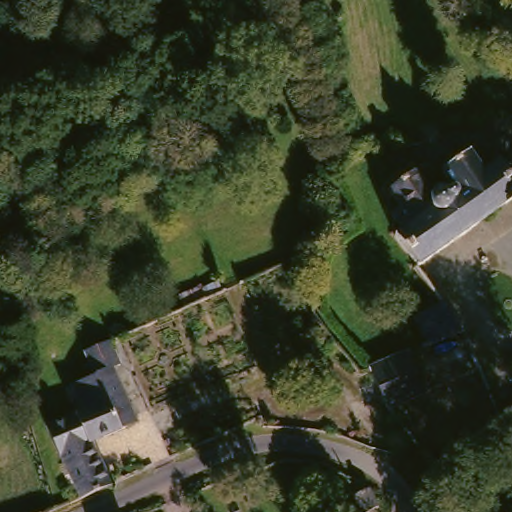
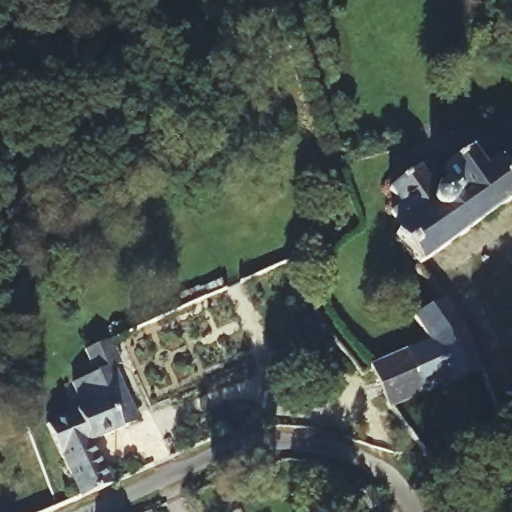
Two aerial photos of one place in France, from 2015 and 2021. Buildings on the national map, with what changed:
unchanged [(388,235),(395,230),(377,205),(389,196),(381,185),(406,167),(421,187),(436,175),(431,167),(454,150),(471,172),(473,174),(489,162),(512,192),(512,193),(409,265),(388,235)]
unchanged [(440,302),(458,336),(433,353),(406,320),(440,302)]
unchanged [(73,505),(43,420),(88,404),(78,375),(101,367),(94,350),(119,341),(126,358),(119,361),(139,426),(100,441),(116,490),(73,505)]
unchanged [(384,410),(369,371),(401,360),(419,397),(384,410)]
unchanged [(361,508),(350,486),(369,477),(379,500),(361,508)]

